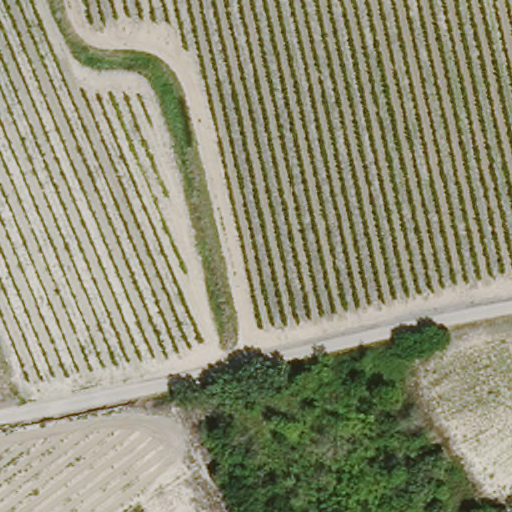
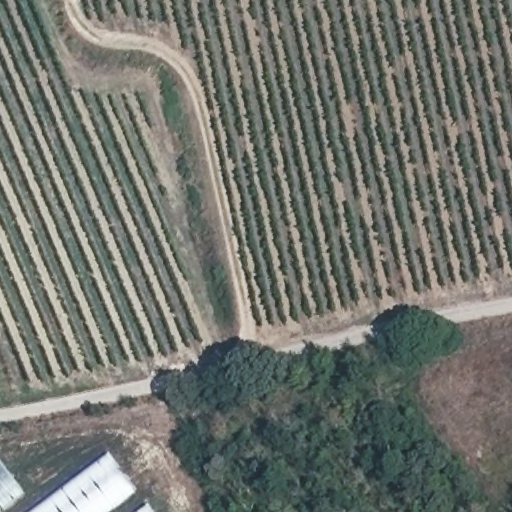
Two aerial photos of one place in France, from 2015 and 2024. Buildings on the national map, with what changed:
new [(26,512),(108,451),(136,488),(104,512),(26,512)]
new [(24,490),(0,508),(0,458),(24,490)]
unchanged [(146,512),(139,512),(144,508),(146,512)]

